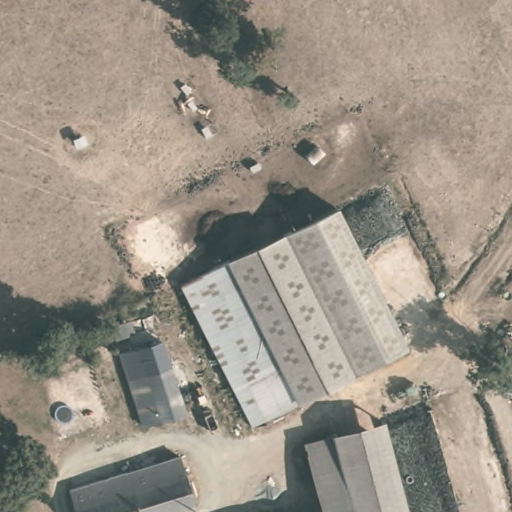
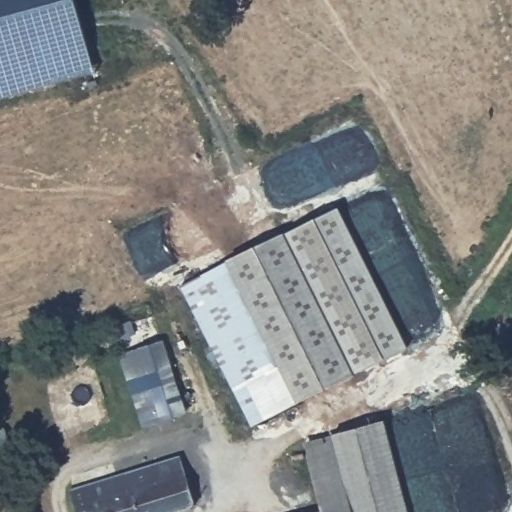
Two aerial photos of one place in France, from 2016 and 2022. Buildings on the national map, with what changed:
new [(75,0),(95,73),(0,99),(0,0),(75,0)]
unchanged [(340,209),(407,349),(358,370),(296,232),(340,209)]
unchanged [(344,380),(305,398),(249,427),(174,287),(296,232),(358,370),(359,373),(344,380)]
unchanged [(141,427),(121,354),(162,340),(186,413),(141,427)]
unchanged [(324,512),(306,445),(380,424),(405,512),(322,512),(324,512)]
unchanged [(15,430),(23,448),(0,457),(0,436),(15,430)]
unchanged [(190,501),(157,512),(80,512),(72,487),(181,451),(198,494),(193,504),(190,501)]

